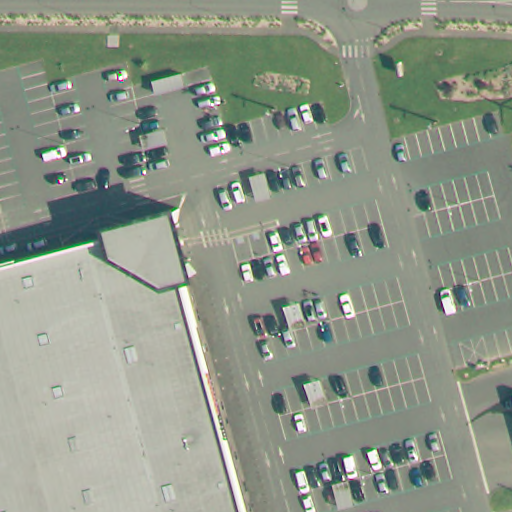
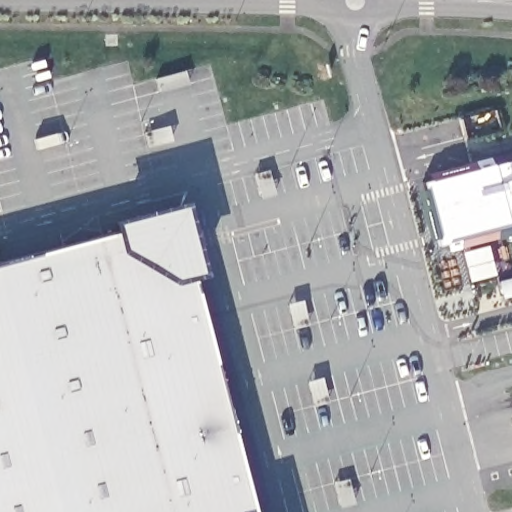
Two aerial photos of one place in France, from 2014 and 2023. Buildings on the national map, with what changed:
new [(512,160),(512,226),(439,246),(422,183),(512,160)]
unchanged [(191,279),(254,512),(0,512),(0,262),(112,233),(109,221),(183,201),(202,277),(191,279)]

